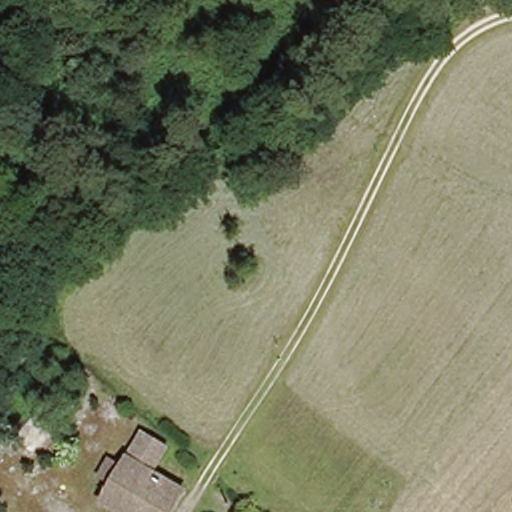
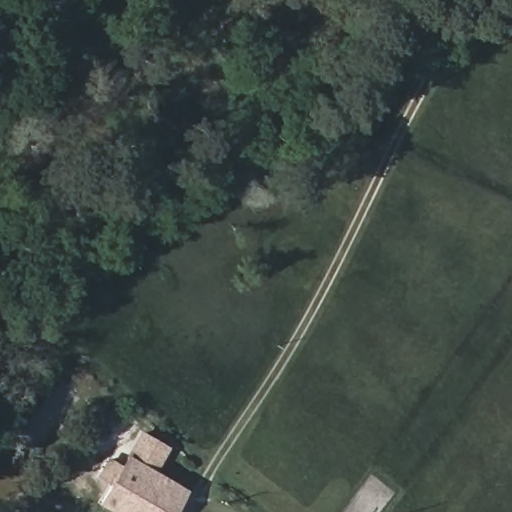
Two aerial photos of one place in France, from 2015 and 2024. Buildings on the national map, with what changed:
unchanged [(171,512),(119,512),(106,503),(114,489),(104,482),(113,467),(123,473),(143,438),(164,454),(153,475),(173,489),(181,496),(171,512)]

